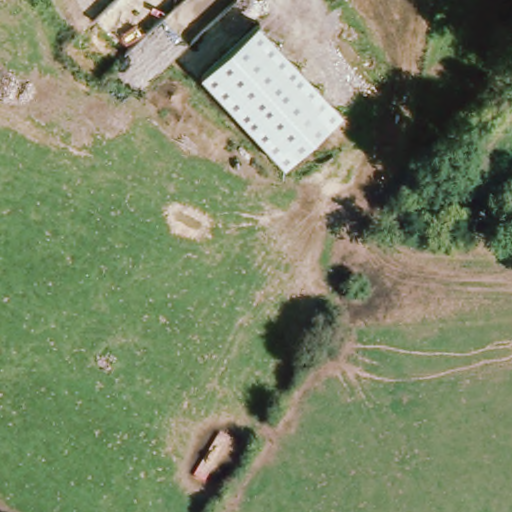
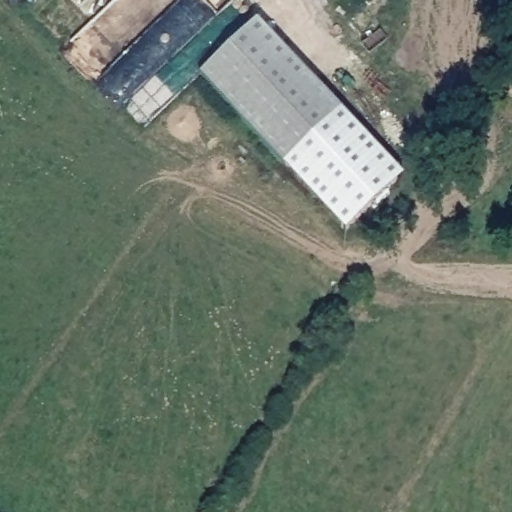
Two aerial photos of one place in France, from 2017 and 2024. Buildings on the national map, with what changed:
unchanged [(342,110),(284,165),(200,75),(258,21),(342,110)]
new [(404,179),(346,231),(284,165),(342,110),(404,179)]

